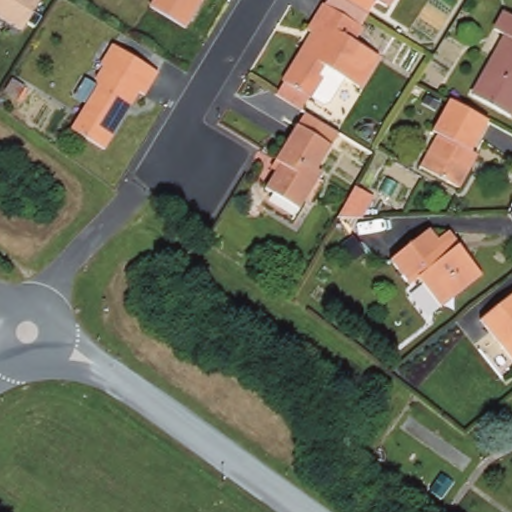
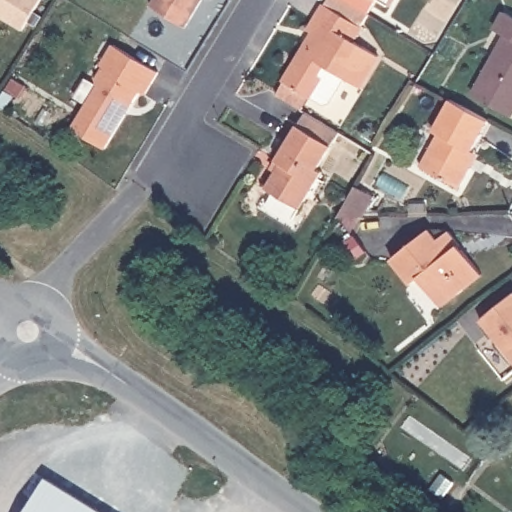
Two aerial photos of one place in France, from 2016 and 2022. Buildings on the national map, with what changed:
unchanged [(18,33),(0,22),(0,0),(38,0),(18,33)]
unchanged [(182,26),(146,5),(150,0),(199,0),(182,26)]
unchanged [(312,35),(306,31),(325,0),(372,0),(364,11),(368,13),(350,40),(376,57),(354,89),(324,71),(307,100),(301,109),(276,93),(282,83),(312,35)]
unchanged [(501,12),(512,19),(512,112),(509,117),(470,94),(505,35),(492,27),(501,12)]
unchanged [(93,81),(101,68),(96,65),(109,46),(155,74),(141,97),(137,95),(105,151),(71,131),(99,85),(93,81)]
unchanged [(471,172),(460,192),(420,169),(439,138),(432,135),(451,102),(488,123),(470,154),(478,159),(471,172)]
unchanged [(274,161),(287,138),(289,139),(297,125),(331,149),(318,170),(322,173),(298,211),(264,187),(280,165),(274,161)]
unchanged [(382,208),(369,229),(373,229),(360,245),(346,229),(365,197),(382,208)]
unchanged [(430,293),(420,280),(413,286),(392,260),(430,231),(438,242),(450,233),(483,277),(453,299),(440,307),(430,293)]
unchanged [(512,360),(482,321),(512,298),(512,360)]
new [(102,512),(26,512),(47,478),(102,512)]

